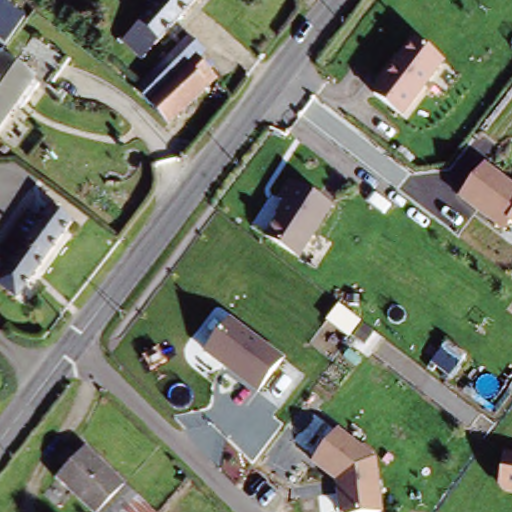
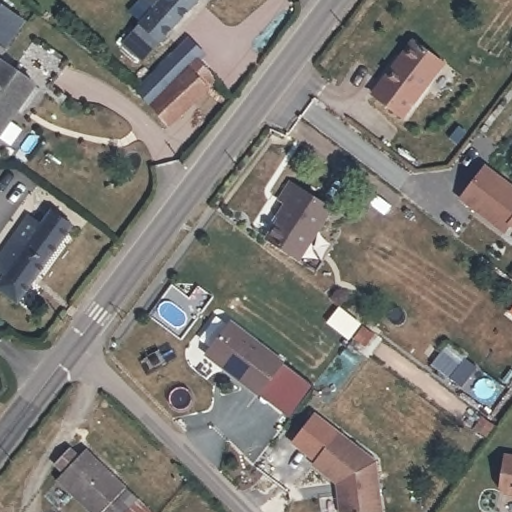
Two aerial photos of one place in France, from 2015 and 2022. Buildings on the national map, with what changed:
unchanged [(0,38),(0,0),(2,0),(19,11),(0,38)]
unchanged [(140,61),(120,41),(160,0),(195,0),(140,61)]
unchanged [(47,37),(80,62),(62,87),(75,97),(68,106),(56,96),(35,79),(22,95),(17,102),(12,99),(0,116),(0,57),(21,72),(47,37)]
unchanged [(167,126),(150,110),(132,95),(188,37),(205,51),(215,60),(207,67),(216,76),(167,126)]
unchanged [(371,96),(413,38),(446,62),(403,120),(371,96)]
unchanged [(510,226),(505,234),(458,199),(485,163),(512,184),(512,228),(510,226)]
unchanged [(300,262),(265,240),(279,218),(276,216),(285,203),(278,199),(290,181),(298,186),(335,208),(300,262)]
unchanged [(35,226),(45,211),(66,225),(15,300),(0,291),(0,251),(23,219),(35,226)]
unchanged [(260,396),(204,355),(230,319),(285,361),(260,396)]
new [(314,386),(290,419),(261,394),(285,363),(314,386)]
unchanged [(378,460),(385,512),(340,512),(336,484),(312,465),(338,430),(378,460)]
unchanged [(63,471),(56,465),(68,453),(75,460),(86,449),(138,498),(125,512),(84,512),(53,481),(63,471)]
unchanged [(506,491),(512,460),(512,493),(506,491)]
unchanged [(151,512),(125,512),(138,498),(151,512)]

